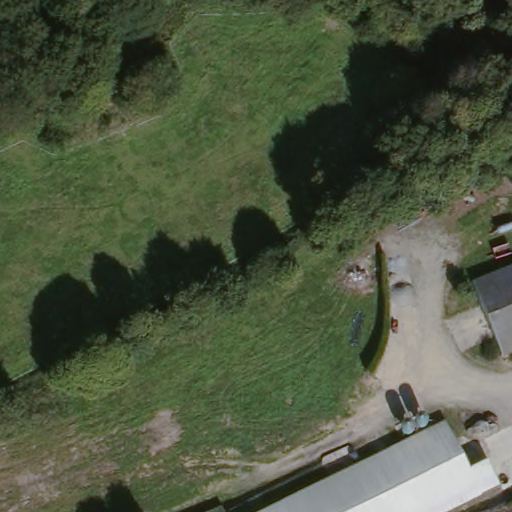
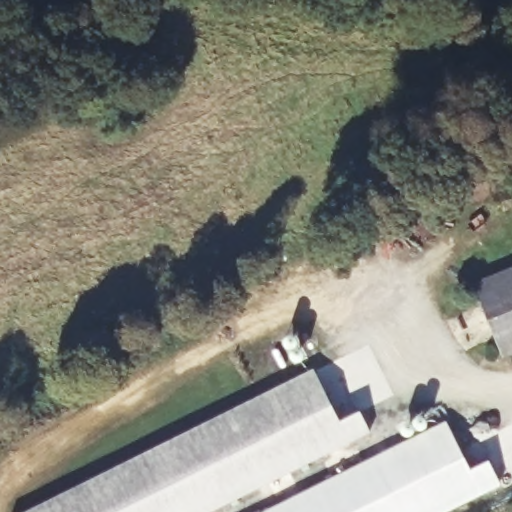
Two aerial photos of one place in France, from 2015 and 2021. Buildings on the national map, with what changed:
unchanged [(512,357),(499,362),(471,289),(512,273),(512,357)]
new [(360,410),(371,432),(213,512),(27,512),(314,368),(340,421),(360,410)]
unchanged [(462,470),(480,459),(492,483),(439,512),(268,512),(437,421),(462,470)]

